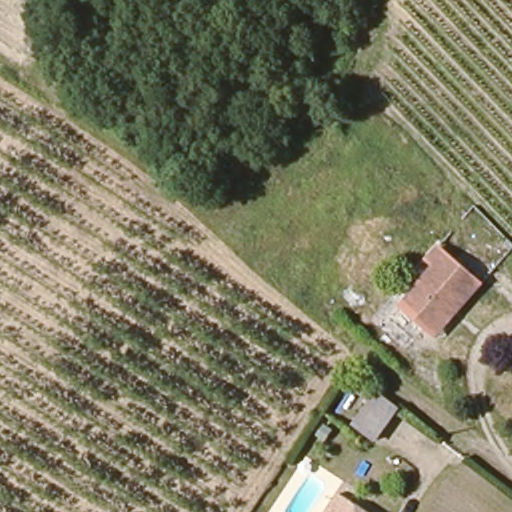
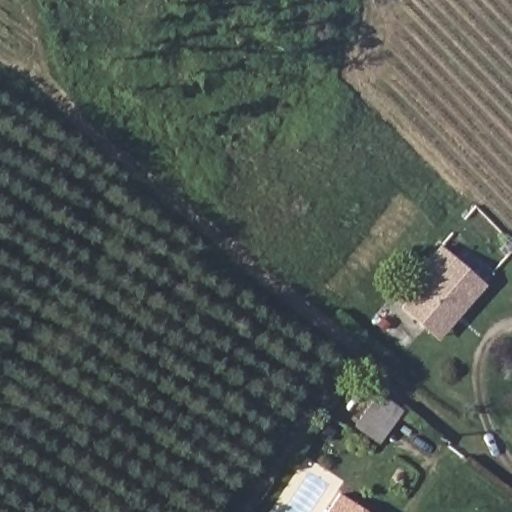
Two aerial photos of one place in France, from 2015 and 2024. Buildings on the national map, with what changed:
unchanged [(406,310),(443,256),(483,287),(444,340),(406,310)]
unchanged [(361,429),(381,396),(400,409),(379,441),(361,429)]
unchanged [(369,506),(366,512),(331,512),(345,490),(369,506)]

